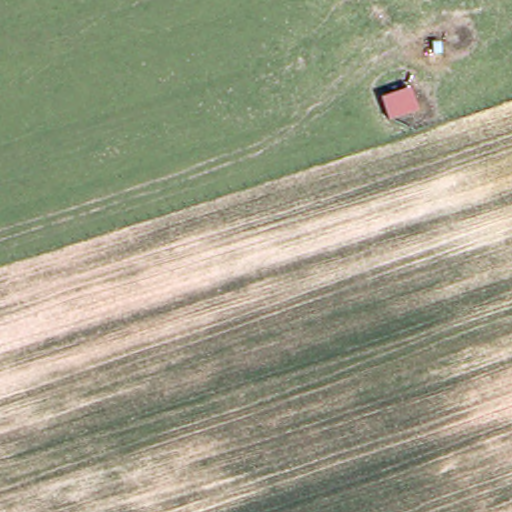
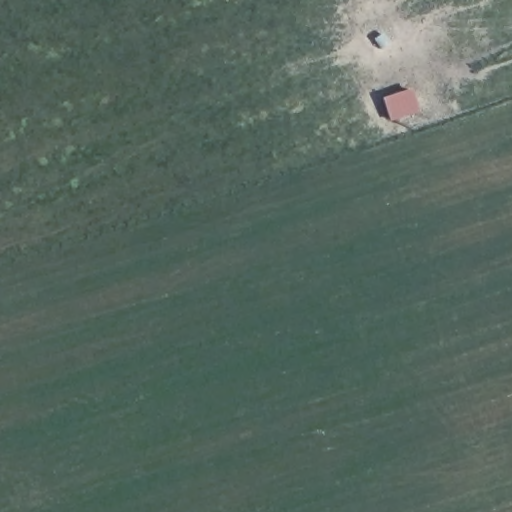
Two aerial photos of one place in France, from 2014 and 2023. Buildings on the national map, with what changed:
unchanged [(393,120),(383,97),(410,82),(420,108),(393,120)]

